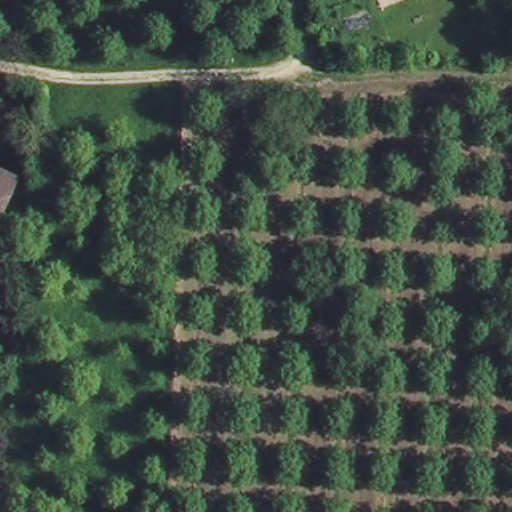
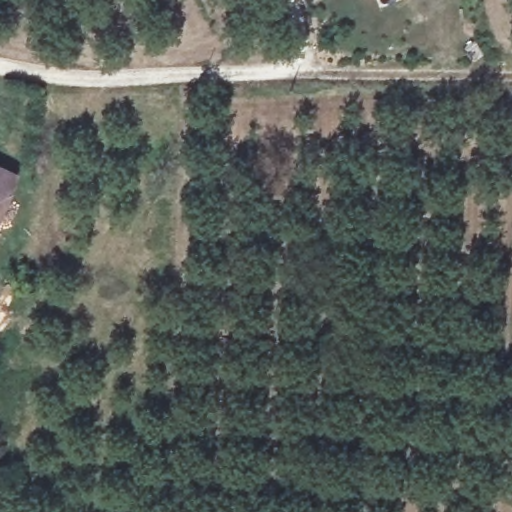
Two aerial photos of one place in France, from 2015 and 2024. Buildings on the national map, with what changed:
unchanged [(0,172),(13,179),(3,199),(0,197),(0,172)]
unchanged [(0,197),(3,199),(0,203),(0,197)]

